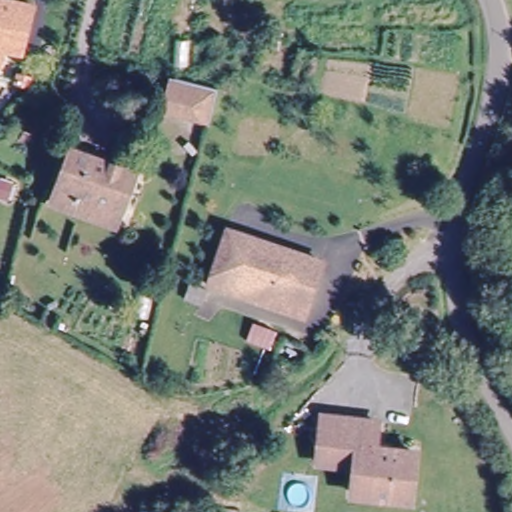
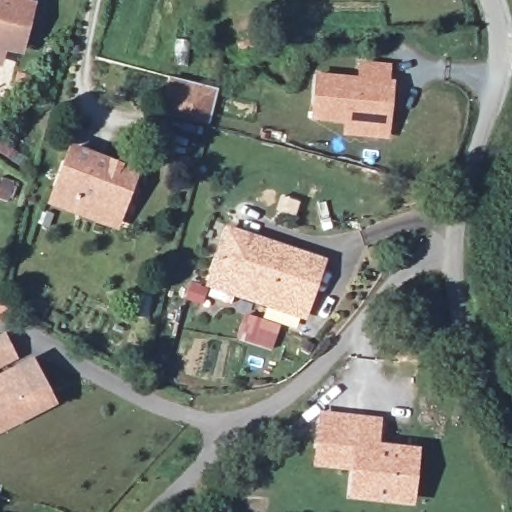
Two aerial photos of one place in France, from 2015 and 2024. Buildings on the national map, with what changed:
unchanged [(28,2),(21,32),(12,30),(8,48),(0,46),(0,0),(21,0),(28,2)]
unchanged [(154,92),(162,61),(210,75),(200,106),(154,92)]
new [(356,77),(358,61),(391,63),(390,80),(394,80),(390,140),(342,136),(343,124),(312,121),(315,73),(356,77)]
unchanged [(67,213),(48,208),(63,153),(126,172),(116,208),(111,224),(67,213)]
unchanged [(263,309),(227,295),(205,286),(209,275),(226,232),(321,269),(305,312),(300,323),(263,309)]
new [(21,363),(32,357),(56,403),(0,433),(0,335),(4,333),(21,363)]
unchanged [(378,451),(418,462),(407,508),(351,493),(357,467),(319,457),(323,438),(329,414),(384,426),(378,451)]

